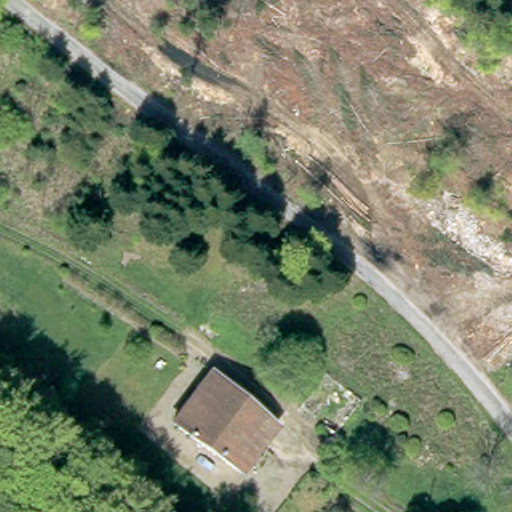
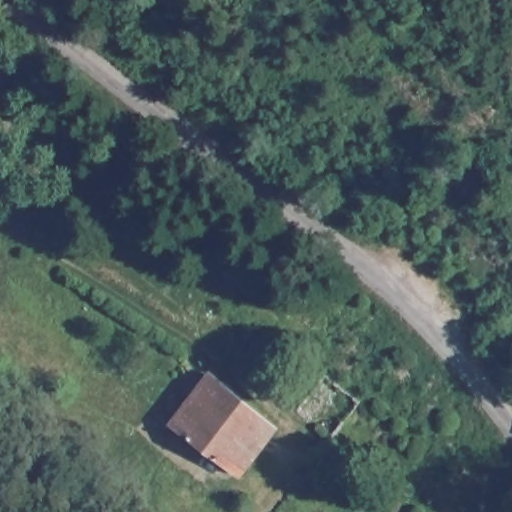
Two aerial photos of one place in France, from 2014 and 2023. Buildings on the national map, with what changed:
unchanged [(274,421),(238,470),(173,421),(184,406),(210,371),(274,421)]

